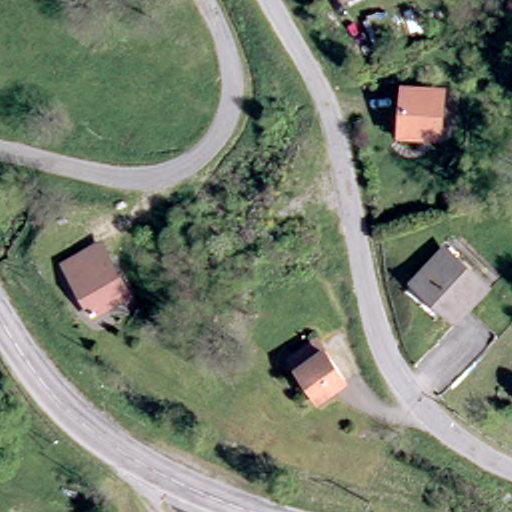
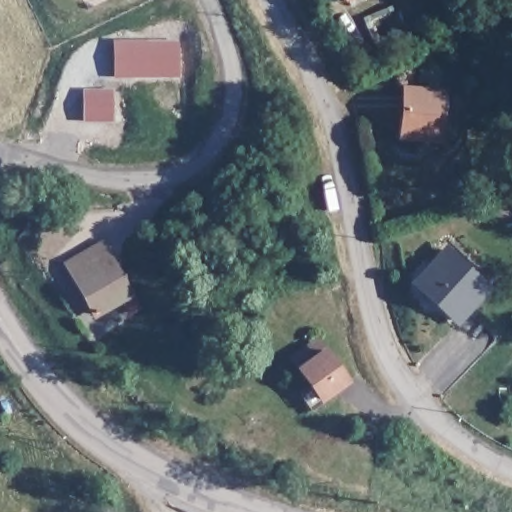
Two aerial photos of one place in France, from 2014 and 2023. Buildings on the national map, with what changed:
unchanged [(353,0),(351,1),(350,0),(353,0)]
new [(122,46),(182,46),(181,80),(122,80),(115,80),(115,46),(122,46)]
new [(86,95),(115,94),(115,124),(86,124),(86,95)]
unchanged [(406,96),(440,99),(438,141),(403,139),(406,96)]
unchanged [(97,312),(71,262),(83,255),(107,245),(113,257),(132,294),(97,312)]
unchanged [(451,254),(488,290),(457,323),(420,286),(451,254)]
unchanged [(325,407),(303,377),(295,367),(321,348),(328,359),(350,388),(325,407)]

